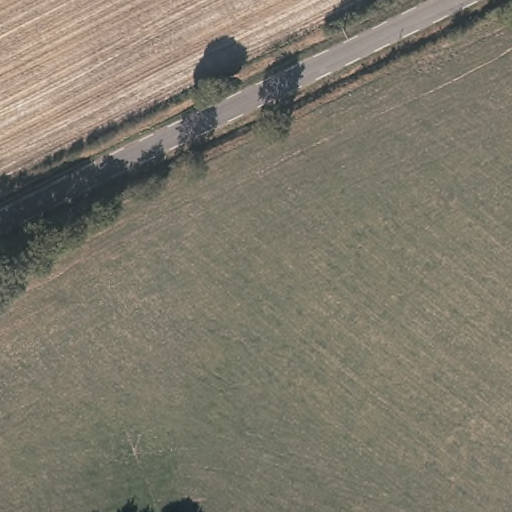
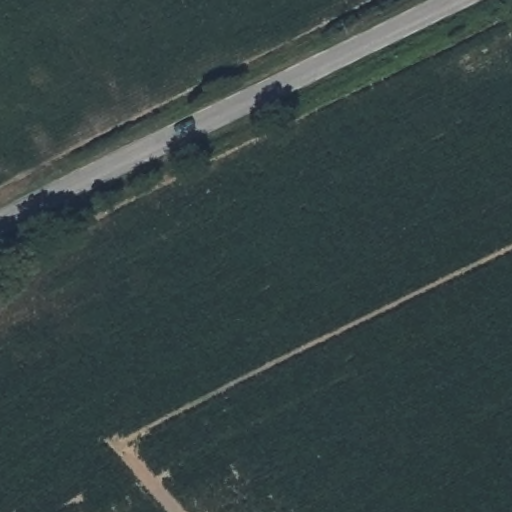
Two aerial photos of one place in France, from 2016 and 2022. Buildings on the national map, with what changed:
[]

